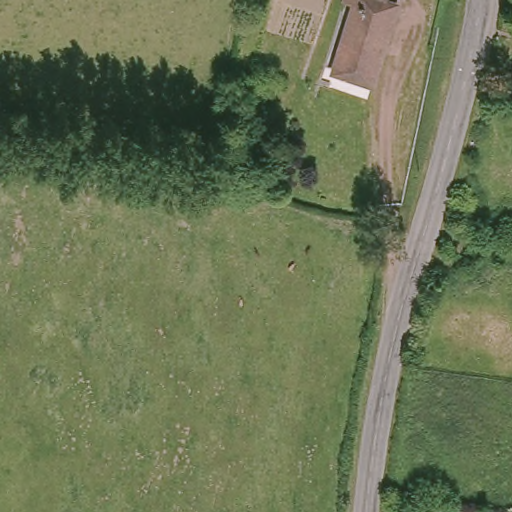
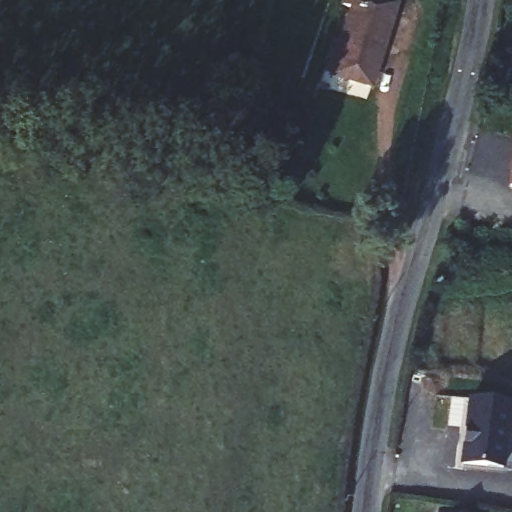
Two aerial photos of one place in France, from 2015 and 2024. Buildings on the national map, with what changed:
unchanged [(352,4),(343,0),(394,0),(395,1),(368,84),(330,72),(352,4)]
new [(512,188),(508,187),(512,154),(512,188)]
new [(512,432),(512,471),(460,465),(462,445),(470,446),(472,430),(464,429),(468,398),(512,404),(512,420),(510,432),(512,432)]

